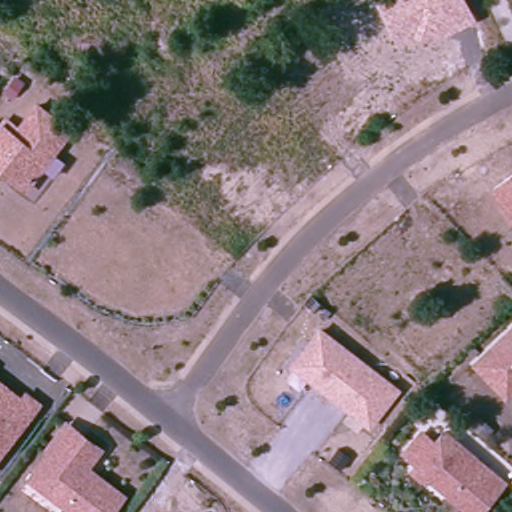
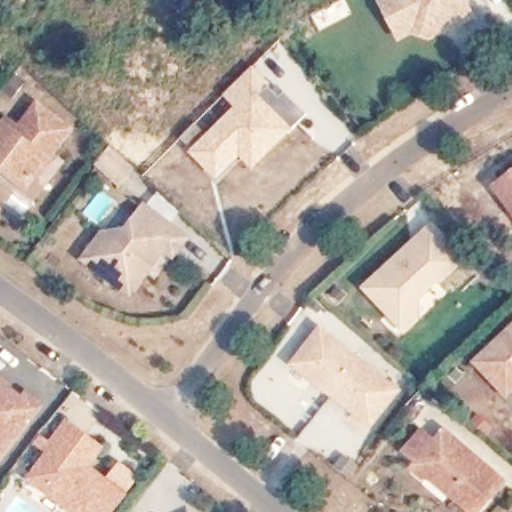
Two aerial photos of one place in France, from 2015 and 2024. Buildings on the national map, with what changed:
unchanged [(414,37),(399,44),(377,1),(380,0),(467,0),(477,21),(421,43),(414,37)]
new [(271,84),(274,81),(308,114),(254,169),(241,156),(216,180),(187,152),(234,107),(222,96),(252,64),(271,84)]
unchanged [(0,169),(0,130),(3,126),(7,120),(19,129),(37,104),(71,128),(53,153),(34,180),(28,189),(0,169)]
unchanged [(512,174),(512,209),(495,185),(512,174)]
new [(115,247),(146,208),(172,228),(188,241),(173,259),(164,252),(129,297),(83,260),(102,237),(115,247)]
new [(466,258),(421,300),(421,320),(404,336),(360,289),(432,220),(466,258)]
unchanged [(296,364),(325,330),(400,394),(371,427),(296,364)]
unchanged [(480,364),(512,337),(512,393),(509,396),(480,364)]
unchanged [(21,401),(25,395),(39,405),(0,455),(0,385),(21,401)]
unchanged [(93,450),(79,469),(87,475),(116,497),(105,512),(67,512),(45,496),(24,481),(44,455),(63,428),(93,450)]
unchanged [(423,477),(412,467),(417,461),(405,450),(424,430),(436,441),(446,430),(504,483),(478,512),(470,512),(449,493),(433,479),(423,477)]

